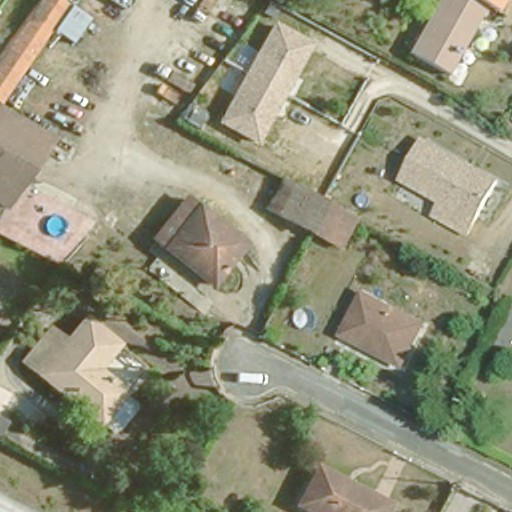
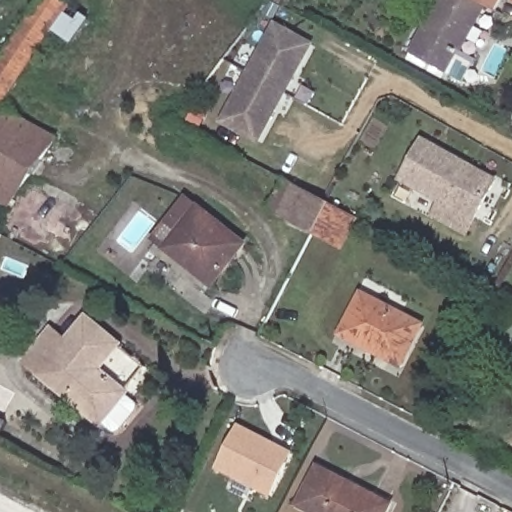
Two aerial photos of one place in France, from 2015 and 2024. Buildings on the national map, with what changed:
unchanged [(0,3),(0,0),(2,0),(0,3)]
unchanged [(0,97),(0,53),(37,0),(78,0),(91,8),(77,37),(52,25),(2,98),(0,97)]
unchanged [(462,63),(451,56),(444,66),(410,46),(438,0),(485,0),(461,40),(472,47),(462,63)]
unchanged [(496,6),(485,0),(500,0),(496,6)]
unchanged [(264,140),(217,112),(245,65),(273,18),(320,46),(292,93),(264,140)]
unchanged [(14,204),(0,196),(0,97),(2,98),(59,131),(14,204)]
unchanged [(497,179),(468,231),(436,214),(443,200),(402,179),(424,140),(497,179)]
unchanged [(342,238),(322,228),(321,229),(275,204),(292,174),(335,196),(337,198),(357,208),(342,238)]
unchanged [(248,235),(216,278),(157,233),(190,190),(248,235)]
unchanged [(428,317),(407,358),(347,328),(368,288),(428,317)]
unchanged [(131,343),(110,368),(137,393),(113,423),(37,361),(63,329),(77,341),(99,316),(131,343)]
unchanged [(512,317),(512,323),(510,322),(512,317)]
new [(6,422),(0,433),(0,419),(6,422)]
new [(215,469),(238,423),(293,452),(270,497),(215,469)]
unchanged [(386,512),(332,512),(304,498),(322,460),(395,495),(386,512)]

